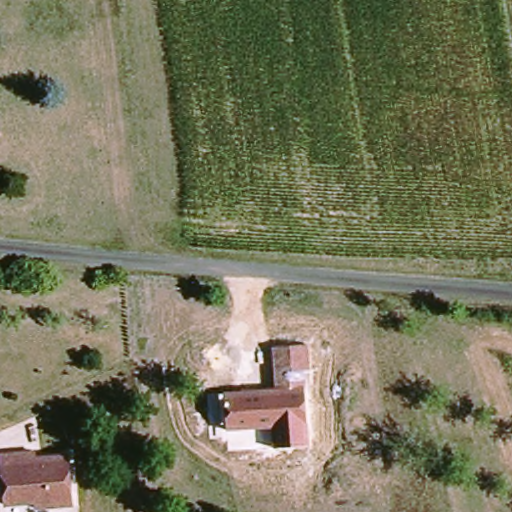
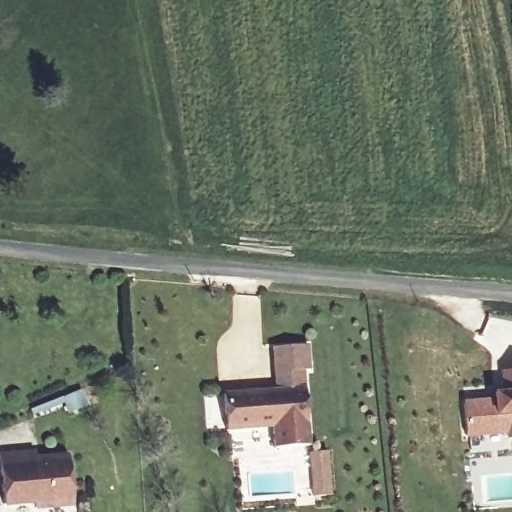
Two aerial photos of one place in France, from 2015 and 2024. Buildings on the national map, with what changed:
unchanged [(311,373),(304,374),(309,444),(271,449),(271,428),(225,432),(221,393),(274,389),(272,349),(308,346),(311,373)]
new [(502,393),(499,371),(512,370),(512,438),(504,439),(504,433),(463,436),(461,402),(491,400),(491,394),(502,393)]
unchanged [(36,449),(38,457),(69,455),(74,508),(37,512),(36,503),(4,506),(0,452),(36,449)]

